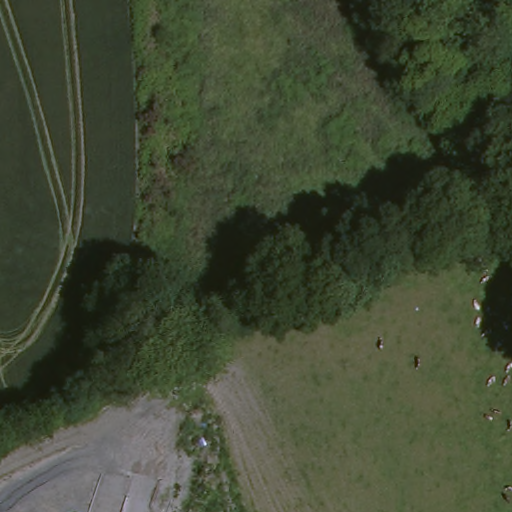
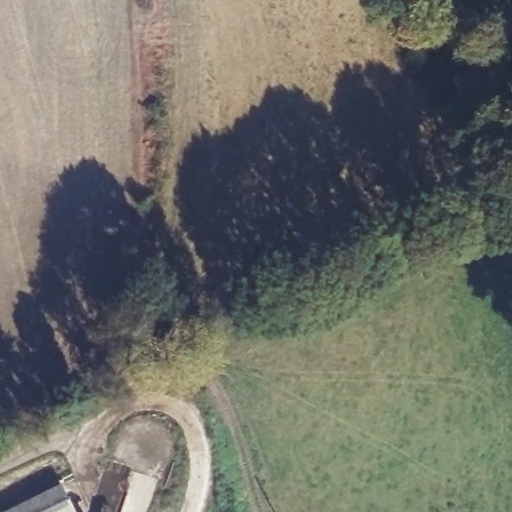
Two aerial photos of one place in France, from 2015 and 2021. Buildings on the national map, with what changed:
new [(75,512),(6,512),(61,486),(75,512)]

